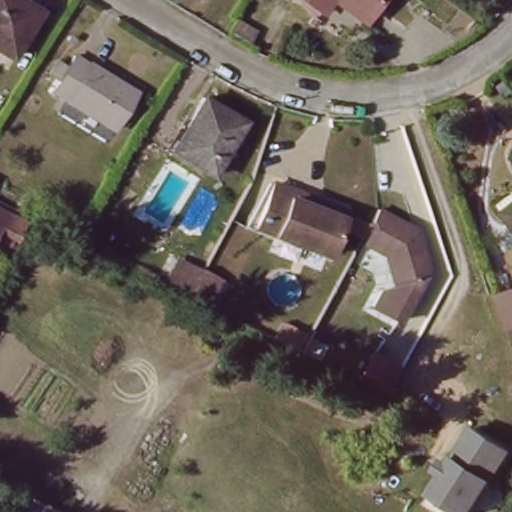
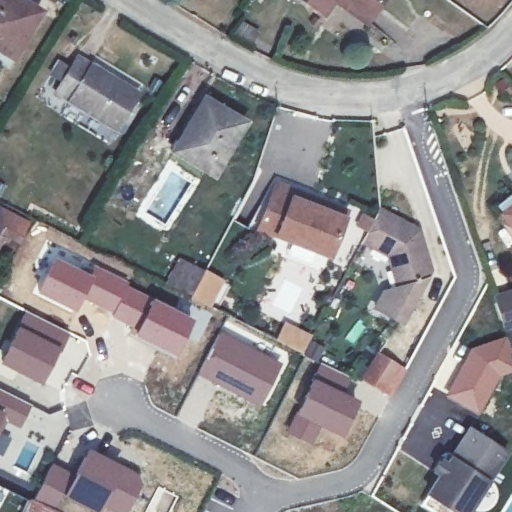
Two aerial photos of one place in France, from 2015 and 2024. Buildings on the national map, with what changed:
unchanged [(14,56),(0,48),(0,0),(29,0),(43,7),(14,56)]
unchanged [(318,12),(303,0),(325,0),(318,12)]
unchanged [(364,25),(330,0),(381,0),(364,25)]
unchanged [(128,104),(107,139),(46,101),(67,66),(128,104)]
unchanged [(244,122),(212,175),(172,151),(187,129),(180,124),(199,94),(244,122)]
unchanged [(267,232),(281,194),(284,187),(351,213),(348,221),(333,258),(267,232)]
unchanged [(498,215),(512,203),(512,233),(498,215)]
unchanged [(438,275),(405,327),(381,313),(401,279),(396,258),(372,244),(390,212),(428,236),(438,275)]
demolished [(210,275),(213,268),(238,224),(259,236),(230,287),(225,284),(210,275)]
unchanged [(0,233),(0,230),(2,231),(0,233)]
new [(54,257),(89,273),(93,265),(127,282),(126,285),(151,297),(135,328),(82,298),(75,312),(35,293),(54,257)]
unchanged [(194,302),(177,293),(191,267),(209,277),(210,275),(225,284),(210,311),(194,302)]
new [(512,287),(512,329),(504,332),(492,293),(512,287)]
new [(135,328),(151,297),(194,318),(174,356),(132,335),(135,328)]
new [(69,333),(39,383),(0,364),(0,361),(25,310),(69,333)]
new [(311,338),(325,346),(318,362),(274,340),(285,322),(312,336),(311,338)]
new [(220,331),(282,363),(259,407),(197,376),(220,331)]
new [(470,347),(505,336),(512,352),(512,373),(500,378),(480,415),(445,396),(470,347)]
unchanged [(359,388),(373,361),(398,373),(384,401),(359,388)]
new [(343,392),(357,400),(339,436),(320,427),(312,445),(285,433),(318,362),(350,377),(343,392)]
new [(21,428),(6,422),(0,433),(0,389),(32,405),(21,428)]
unchanged [(490,480),(470,512),(433,512),(424,506),(429,498),(427,496),(437,478),(432,472),(441,458),(447,462),(451,456),(470,427),(509,451),(490,480)]
demolished [(63,495),(82,504),(77,512),(55,512),(56,510),(63,495)]
unchanged [(53,510),(51,512),(22,512),(29,497),(53,510)]

